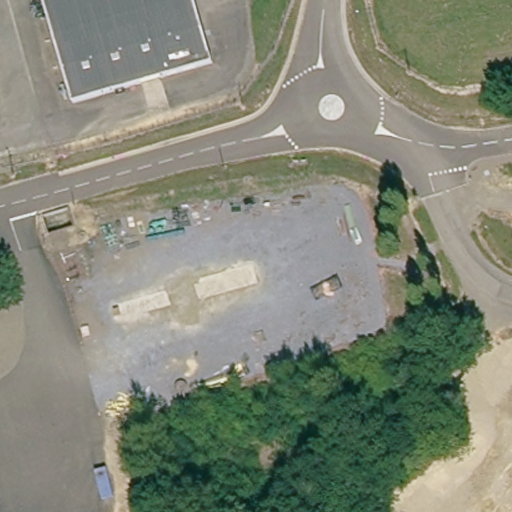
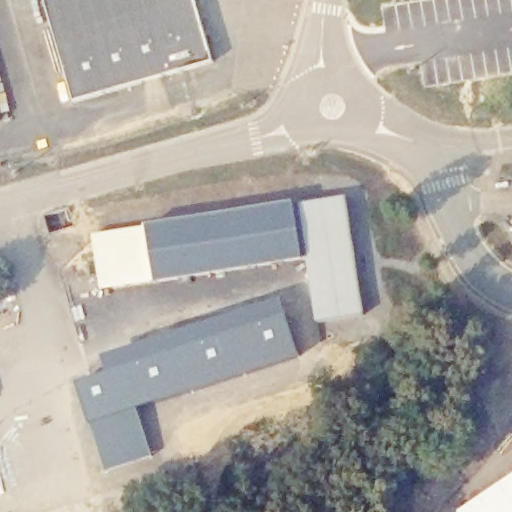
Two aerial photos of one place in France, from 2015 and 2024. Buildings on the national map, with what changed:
unchanged [(211,60),(73,99),(46,0),(193,0),(211,60)]
new [(146,232),(146,227),(292,204),(293,207),(346,200),(366,318),(318,326),(309,261),(301,262),(156,285),(101,292),(92,238),(146,232)]
new [(105,372),(101,356),(282,297),(302,357),(140,411),(154,459),(105,473),(76,382),(105,372)]
new [(512,512),(462,512),(512,477),(512,512)]

